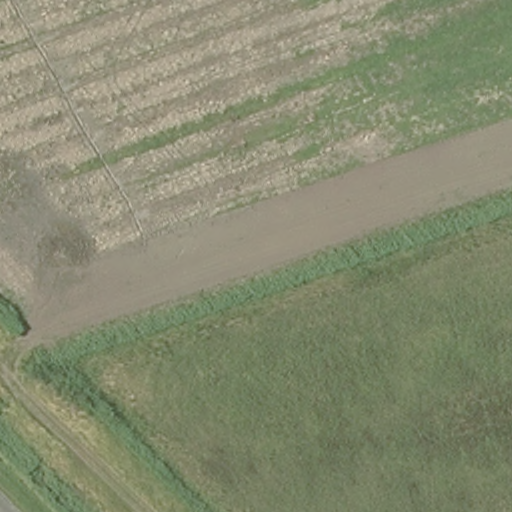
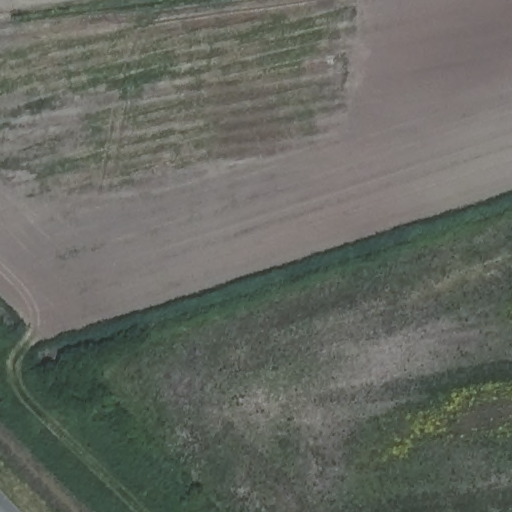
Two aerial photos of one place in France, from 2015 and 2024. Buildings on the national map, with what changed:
[]

